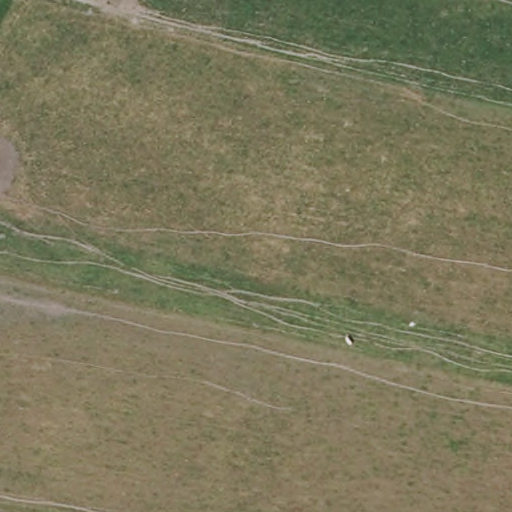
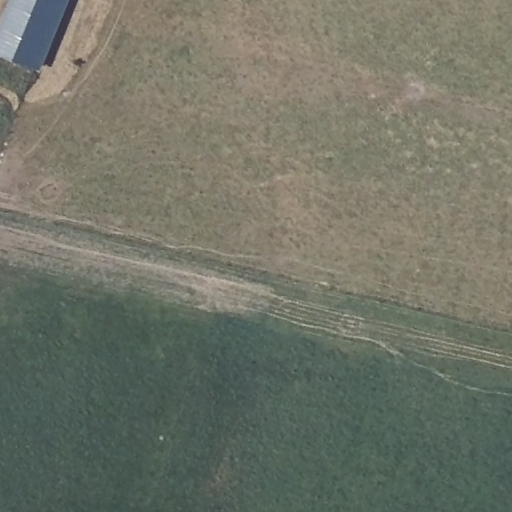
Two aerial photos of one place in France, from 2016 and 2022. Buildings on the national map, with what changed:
new [(61,0),(34,66),(0,52),(0,25),(10,0),(61,0)]

